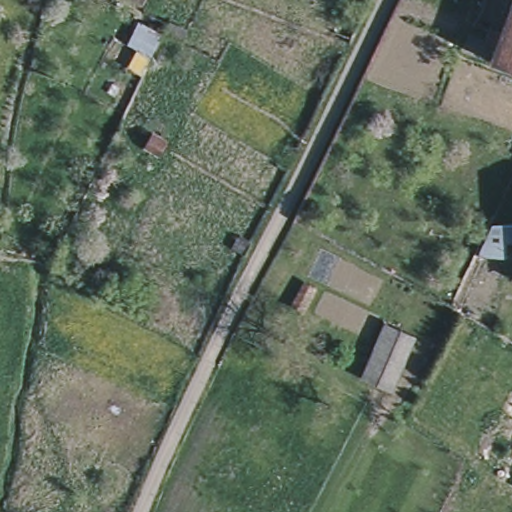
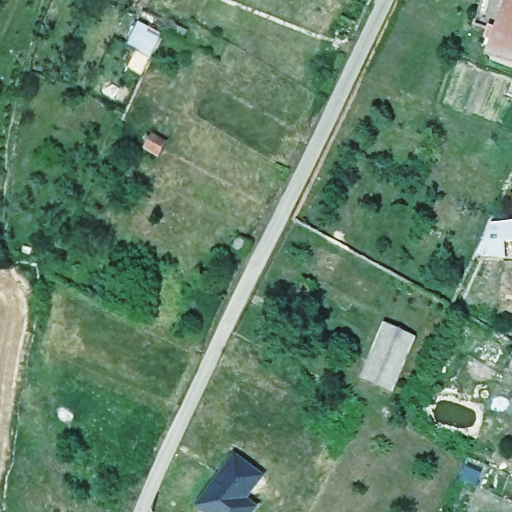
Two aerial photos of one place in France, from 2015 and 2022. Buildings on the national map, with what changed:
unchanged [(499,32),(511,0),(512,0),(512,70),(488,61),(495,42),(484,38),(487,27),(499,32)]
unchanged [(506,254),(479,252),(492,222),(512,220),(512,237),(507,237),(506,254)]
unchanged [(251,248),(245,260),(233,254),(239,241),(251,248)]
unchanged [(392,391),(359,380),(381,320),(415,336),(392,391)]
new [(247,499),(258,507),(254,512),(202,512),(193,506),(233,453),(264,476),(247,499)]

